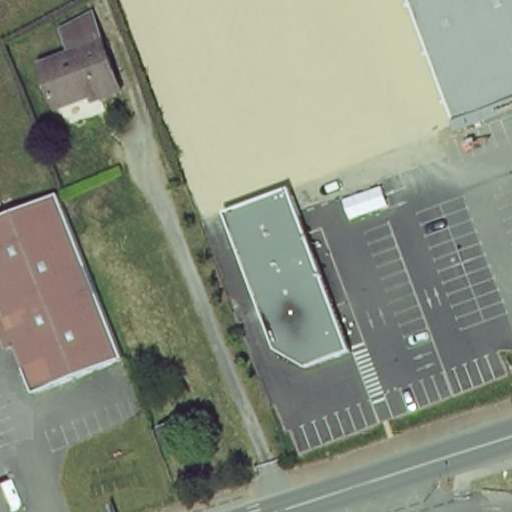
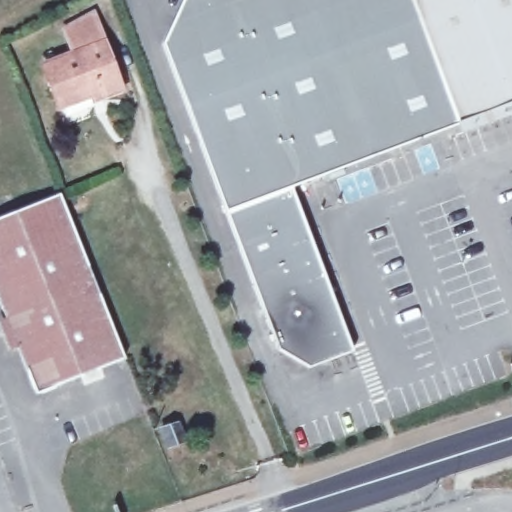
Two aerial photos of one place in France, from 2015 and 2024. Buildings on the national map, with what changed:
new [(293,189),(226,214),(163,45),(183,0),(409,0),(459,126),(293,189)]
unchanged [(459,126),(409,0),(512,0),(512,104),(459,126)]
unchanged [(123,88),(102,96),(99,90),(59,106),(43,66),(70,54),(60,28),(93,14),(123,88)]
unchanged [(293,189),(354,352),(311,369),(276,350),(226,214),(293,189)]
unchanged [(0,309),(0,217),(58,194),(80,249),(125,356),(56,384),(34,393),(25,370),(0,309)]
unchanged [(156,425),(174,420),(179,436),(163,442),(156,425)]

